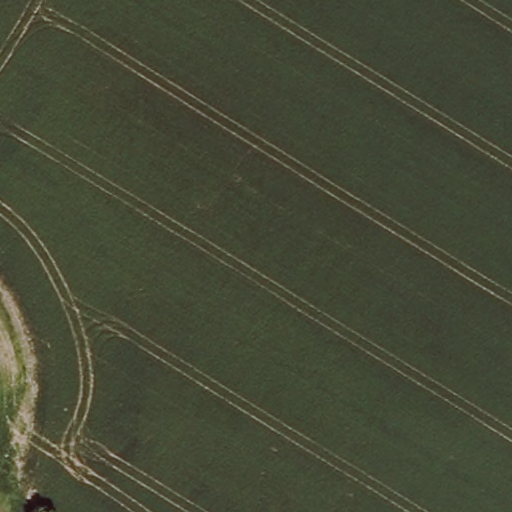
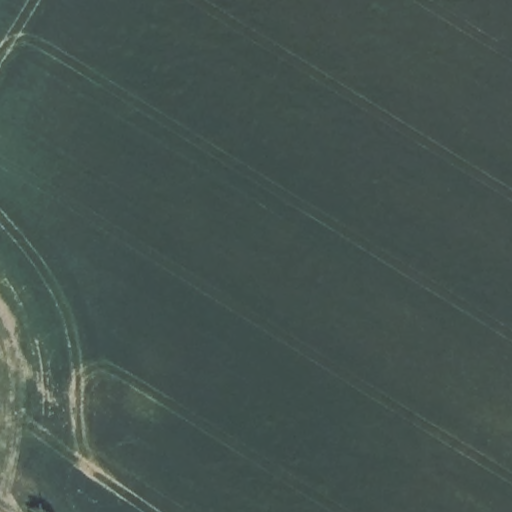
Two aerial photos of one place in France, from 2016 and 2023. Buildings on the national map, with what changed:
[]

